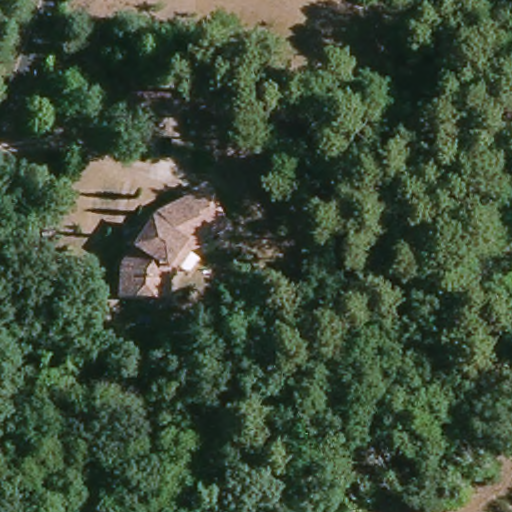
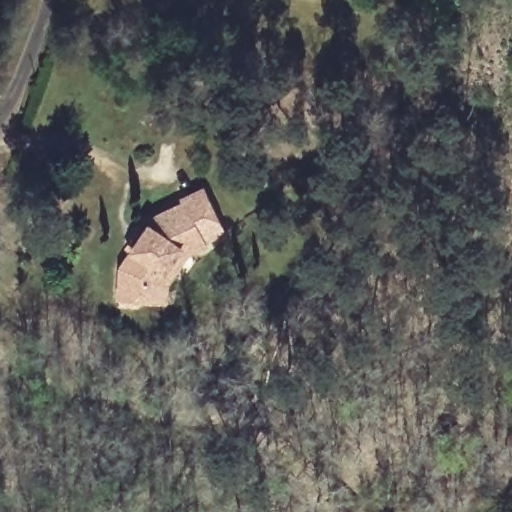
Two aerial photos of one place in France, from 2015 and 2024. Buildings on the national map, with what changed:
unchanged [(376,96),(394,59),(417,69),(398,109),(376,96)]
unchanged [(175,259),(158,289),(158,303),(140,304),(118,304),(117,269),(128,251),(122,247),(132,230),(139,234),(149,217),(177,204),(175,199),(197,188),(220,229),(200,240),(202,246),(175,259)]

